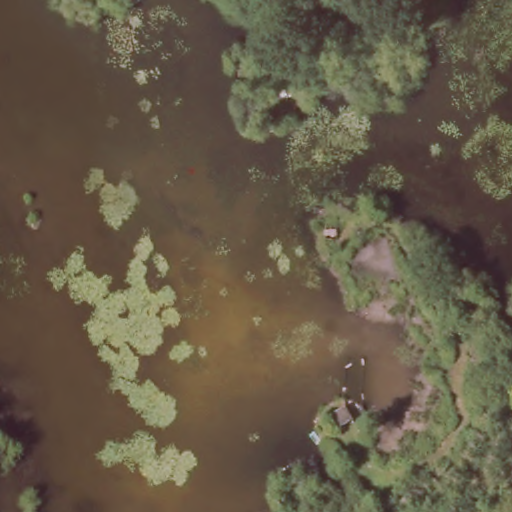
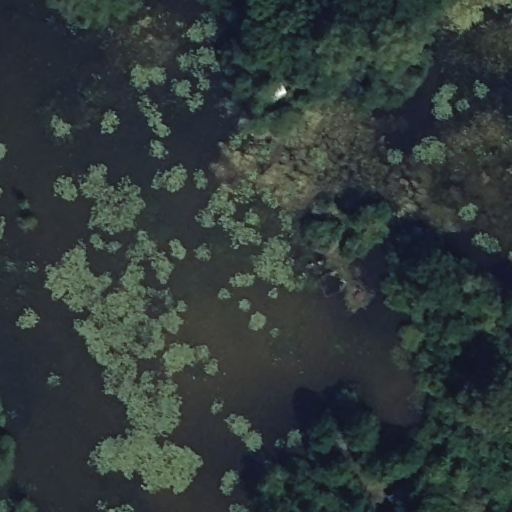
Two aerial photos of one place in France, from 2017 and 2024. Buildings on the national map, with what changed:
unchanged [(285,113),(263,124),(257,111),(278,100),(285,113)]
unchanged [(481,346),(473,331),(486,325),(493,340),(481,346)]
unchanged [(357,417),(339,426),(330,414),(350,404),(357,417)]

